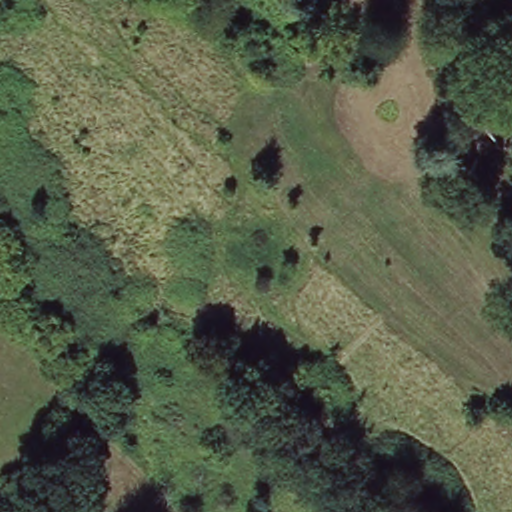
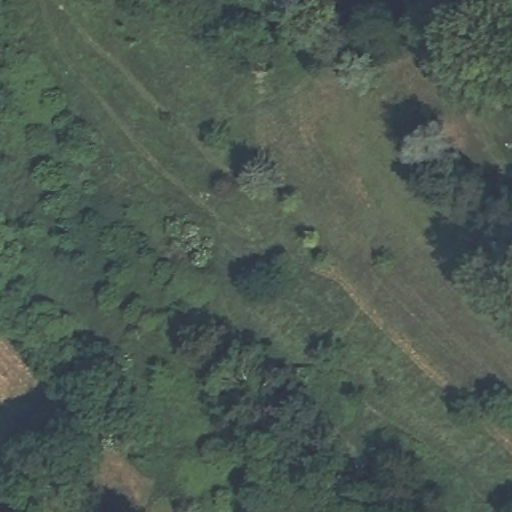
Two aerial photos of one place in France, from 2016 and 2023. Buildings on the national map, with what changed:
[]

